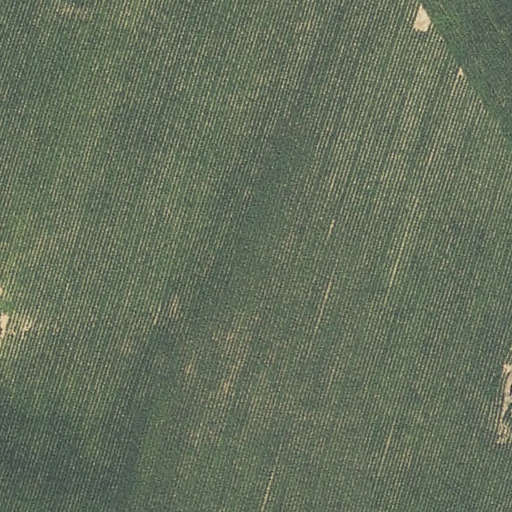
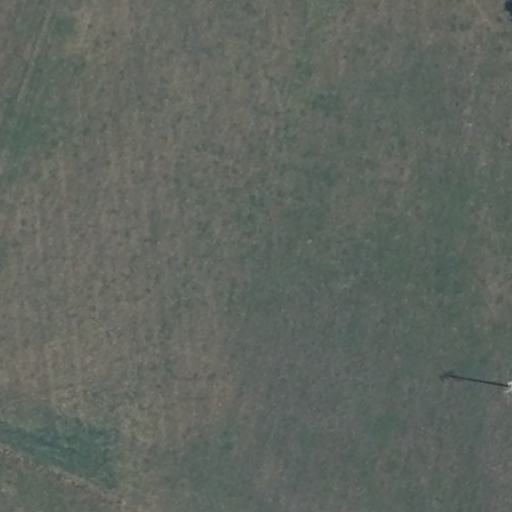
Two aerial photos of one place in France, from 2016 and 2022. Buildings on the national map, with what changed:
[]

